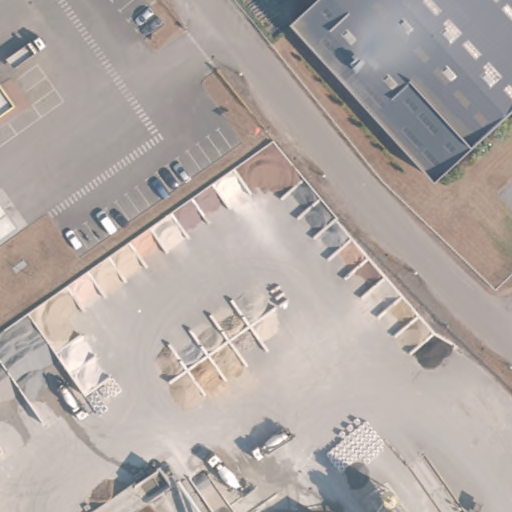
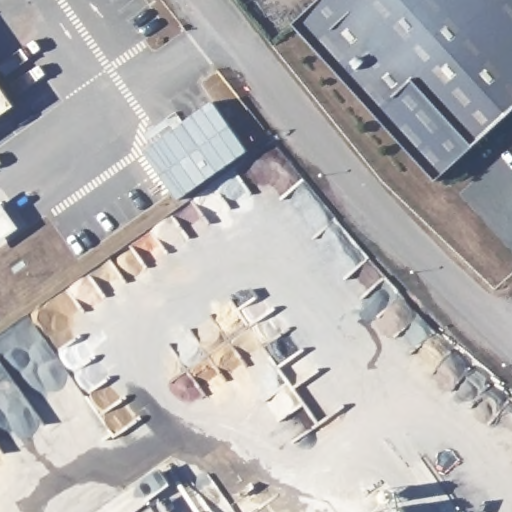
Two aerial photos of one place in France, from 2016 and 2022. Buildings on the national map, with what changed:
unchanged [(512,0),(512,107),(509,104),(432,177),(288,19),(309,0),(512,0)]
unchanged [(0,122),(0,84),(18,109),(0,122)]
new [(213,100),(247,150),(178,200),(143,150),(213,100)]
unchanged [(399,149),(427,180),(418,189),(390,158),(399,149)]
unchanged [(0,244),(0,187),(30,224),(0,244)]

